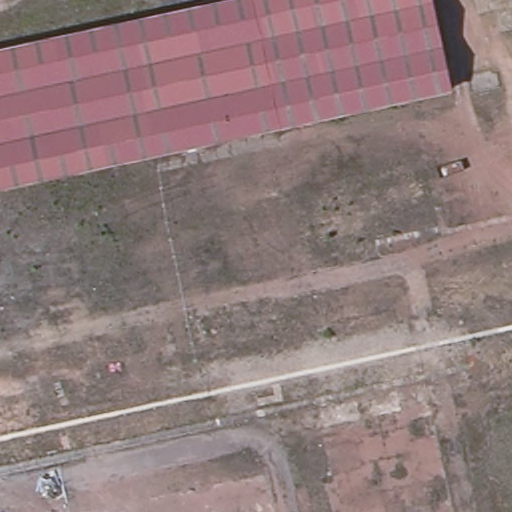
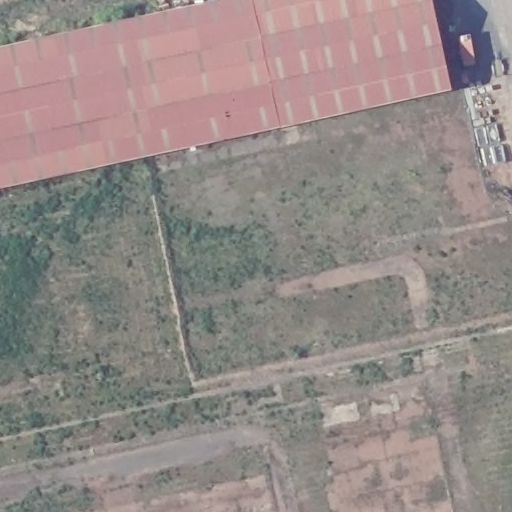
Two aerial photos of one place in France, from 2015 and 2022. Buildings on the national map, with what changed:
unchanged [(452,86),(277,122),(0,182),(0,46),(212,0),(435,0),(452,86)]

